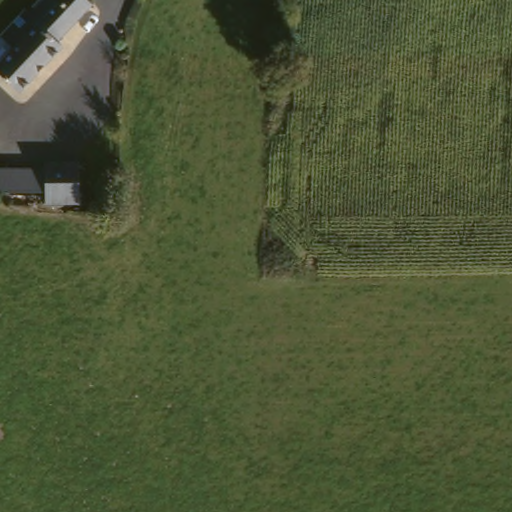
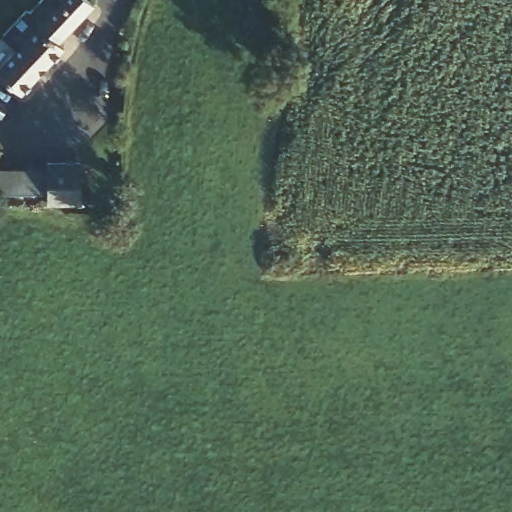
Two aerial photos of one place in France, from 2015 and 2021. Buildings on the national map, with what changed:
unchanged [(70,36),(29,87),(3,66),(21,44),(7,32),(30,5),(41,14),(52,0),(92,0),(65,31),(70,36)]
unchanged [(50,159),(84,160),(81,200),(49,199),(50,159)]
unchanged [(43,166),(42,187),(0,186),(0,164),(43,166)]

